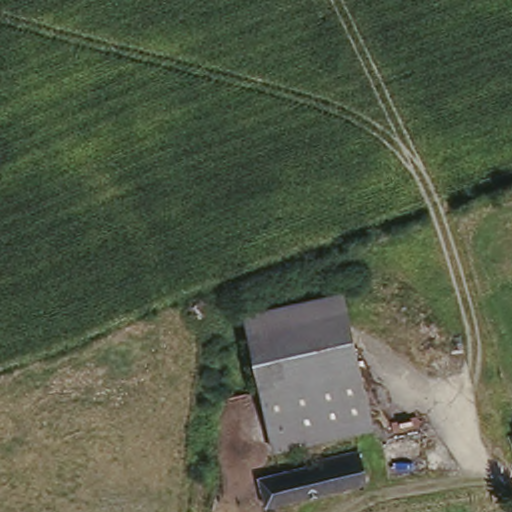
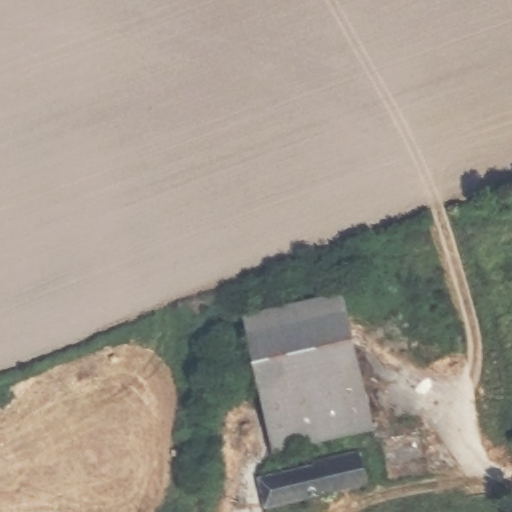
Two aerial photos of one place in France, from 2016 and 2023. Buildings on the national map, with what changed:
unchanged [(249,332),(344,310),(358,365),(260,388),(249,332)]
unchanged [(358,365),(373,424),(273,445),(260,388),(358,365)]
unchanged [(360,444),(368,474),(264,499),(260,481),(327,465),(324,452),(360,444)]

